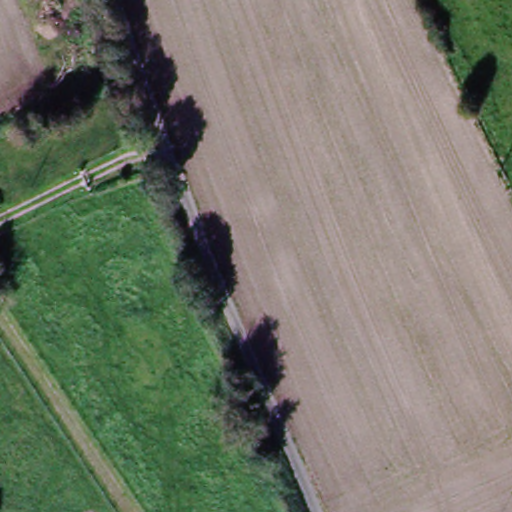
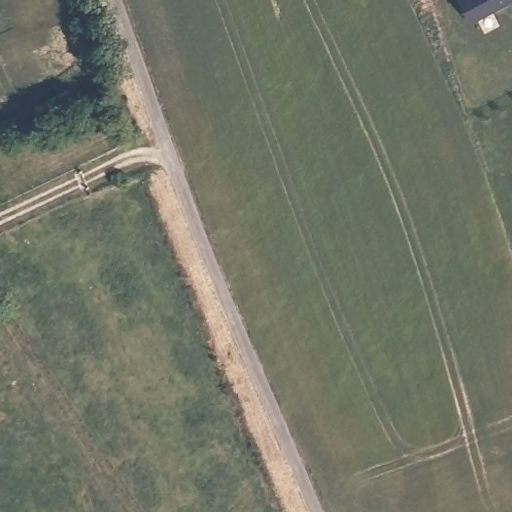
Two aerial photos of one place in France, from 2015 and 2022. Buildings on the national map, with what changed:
new [(512,0),(512,2),(472,24),(460,1),(461,0),(512,0)]

